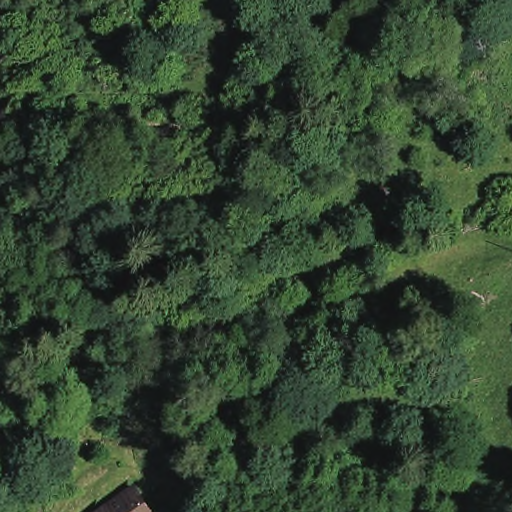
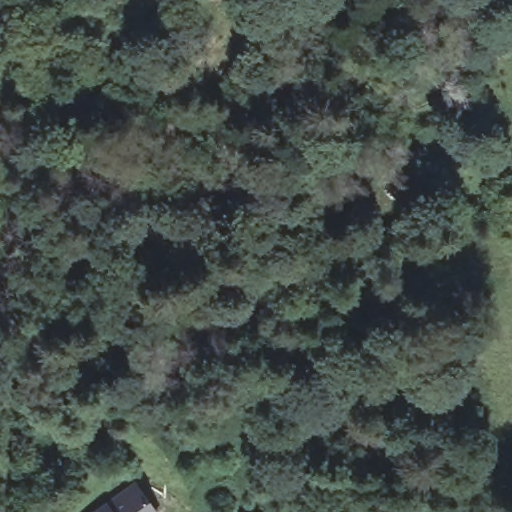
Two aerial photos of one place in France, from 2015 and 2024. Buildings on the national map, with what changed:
unchanged [(140,488),(153,512),(105,512),(140,488)]

